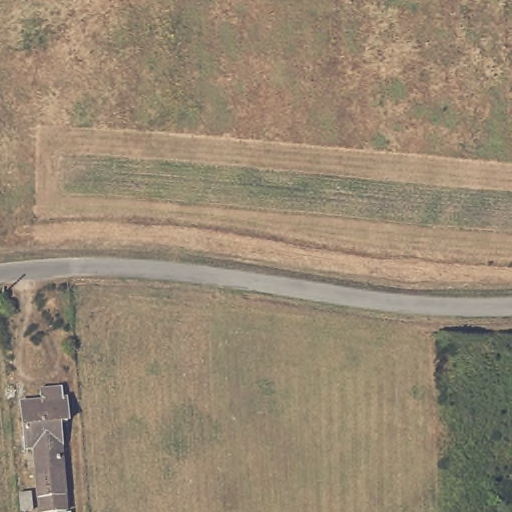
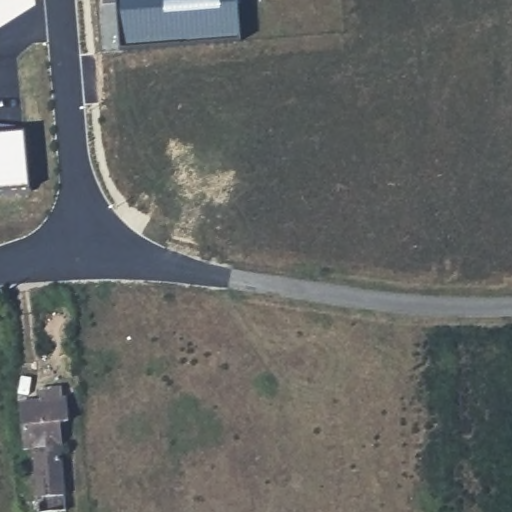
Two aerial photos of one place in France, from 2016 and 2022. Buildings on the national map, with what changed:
new [(117,0),(238,0),(241,41),(120,50),(117,0)]
unchanged [(62,399),(66,399),(68,422),(59,423),(67,511),(58,512),(40,512),(34,447),(27,448),(23,403),(42,402),(41,389),(62,388),(62,399)]
unchanged [(31,493),(32,510),(20,511),(19,493),(31,493)]

